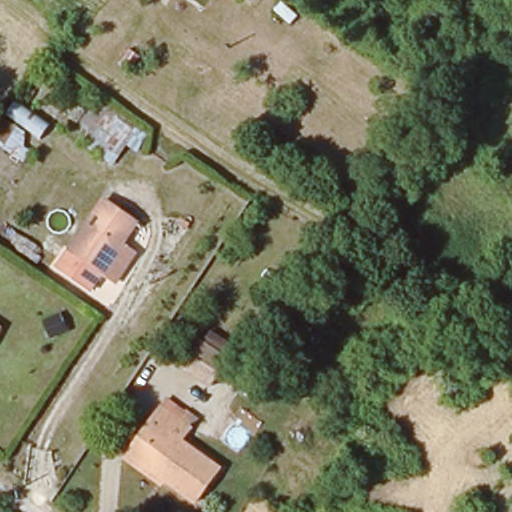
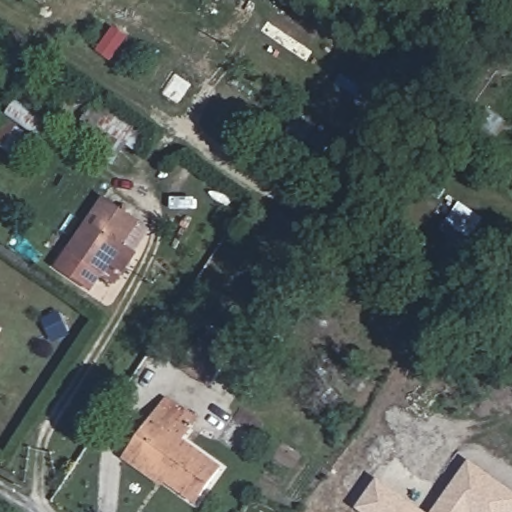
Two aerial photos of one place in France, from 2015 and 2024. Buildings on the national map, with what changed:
unchanged [(16,98),(51,129),(25,165),(0,149),(0,123),(16,98)]
unchanged [(112,107),(136,127),(125,145),(98,127),(112,107)]
unchanged [(139,226),(125,247),(139,255),(119,287),(69,252),(103,201),(139,226)]
unchanged [(213,389),(173,367),(201,324),(239,347),(213,389)]
unchanged [(199,456),(175,492),(134,465),(128,460),(160,410),(165,401),(170,405),(193,423),(189,430),(180,445),(199,456)]
unchanged [(221,470),(196,506),(175,492),(199,456),(221,470)]
new [(512,490),(512,512),(433,512),(470,461),(512,490)]
new [(378,480),(425,512),(360,512),(356,509),(378,480)]

